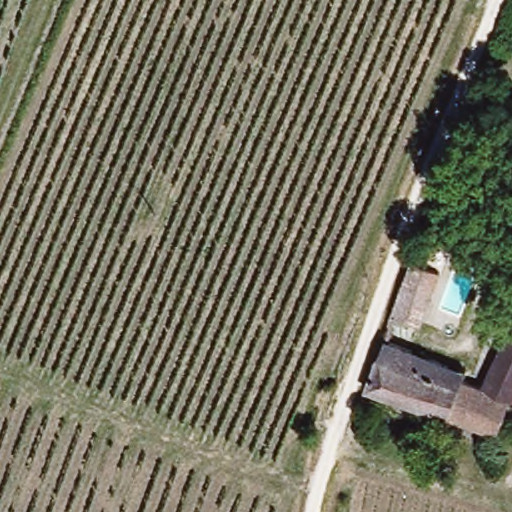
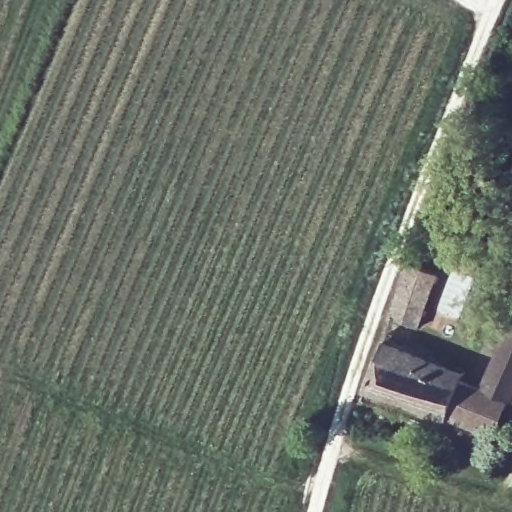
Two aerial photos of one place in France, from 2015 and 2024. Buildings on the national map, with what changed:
unchanged [(443,270),(437,289),(413,352),(464,372),(460,380),(484,388),(511,316),(512,316),(512,396),(495,437),(368,391),(412,259),(443,270)]

